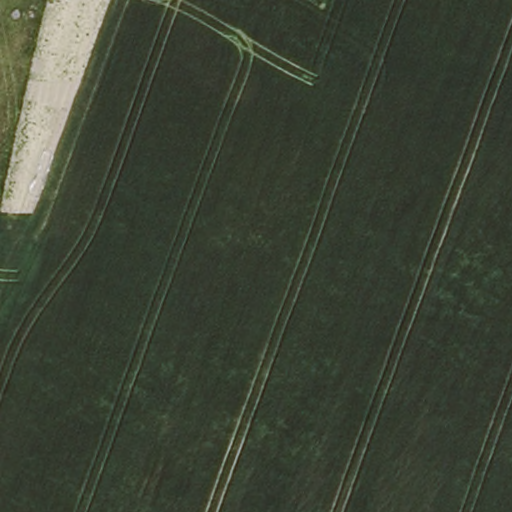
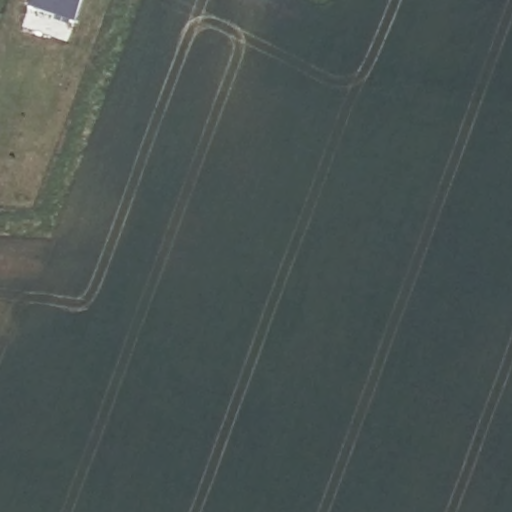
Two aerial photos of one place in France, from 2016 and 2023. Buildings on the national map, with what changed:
new [(33,0),(83,0),(76,25),(30,10),(33,0)]

